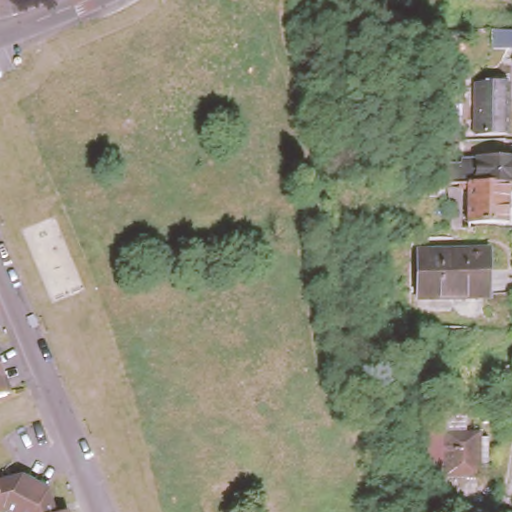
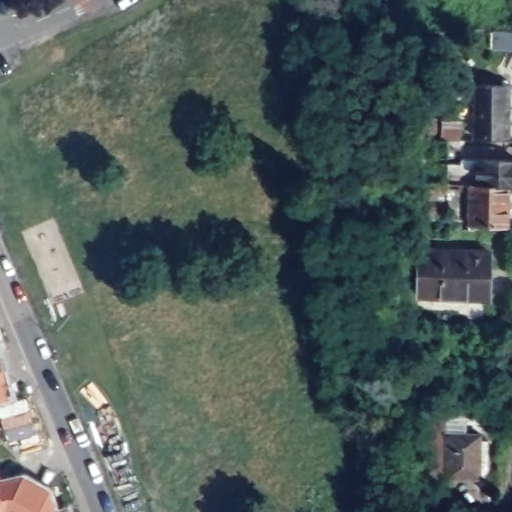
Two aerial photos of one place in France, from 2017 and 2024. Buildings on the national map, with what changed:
unchanged [(488,51),(488,34),(512,34),(512,51),(488,51)]
unchanged [(487,134),(487,83),(512,83),(512,134),(487,134)]
unchanged [(479,130),(471,131),(470,121),(478,121),(479,130)]
unchanged [(460,184),(460,139),(474,139),(474,159),(512,159),(512,184),(480,184),(460,184)]
unchanged [(442,197),(442,184),(455,184),(457,197),(442,197)]
unchanged [(482,223),(480,184),(512,184),(512,223),(482,223)]
unchanged [(475,228),(462,228),(460,193),(473,193),(475,228)]
unchanged [(422,274),(417,274),(417,249),(422,249),(492,250),(492,297),(422,297),(422,274)]
unchanged [(2,380),(6,393),(0,395),(0,361),(5,379),(2,380)]
unchanged [(481,437),(488,437),(488,457),(480,457),(480,477),(445,477),(445,432),(481,432),(481,437)]
unchanged [(0,469),(18,463),(42,478),(49,504),(62,500),(65,512),(16,512),(0,501),(0,469)]
unchanged [(428,495),(448,496),(448,512),(435,512),(428,511),(428,495)]

